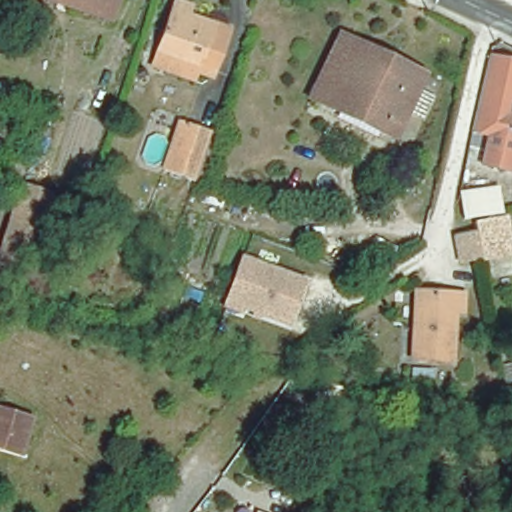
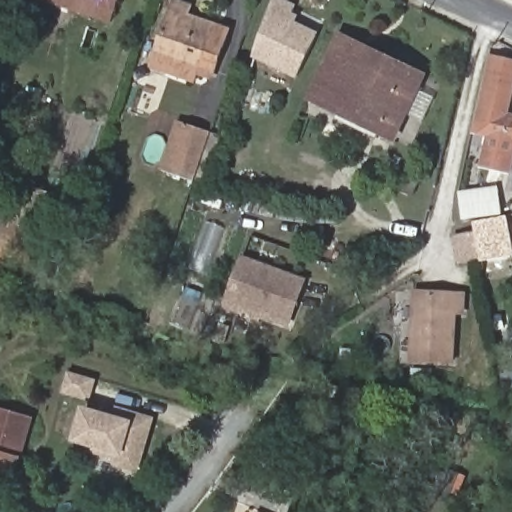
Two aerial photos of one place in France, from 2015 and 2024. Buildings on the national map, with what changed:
unchanged [(46,0),(118,0),(114,12),(110,22),(46,0)]
unchanged [(152,60),(158,44),(174,0),(192,0),(189,9),(230,25),(215,65),(200,59),(194,76),(152,60)]
new [(274,0),(287,0),(295,4),(291,12),(298,15),(295,21),(318,32),(297,78),(252,57),(274,0)]
unchanged [(340,29),(423,69),(417,81),(335,40),(340,29)]
unchanged [(309,92),(335,40),(417,81),(392,133),(375,125),(334,104),(309,92)]
unchanged [(490,52),(512,56),(512,90),(507,109),(512,109),(512,158),(510,166),(483,160),(490,130),(473,126),(490,52)]
unchanged [(190,186),(159,176),(176,126),(207,137),(190,186)]
unchanged [(417,186),(401,179),(407,165),(423,171),(417,186)]
unchanged [(0,242),(0,222),(13,185),(42,195),(22,250),(0,242)]
unchanged [(447,234),(475,229),(472,220),(461,222),(456,199),(495,189),(501,213),(510,251),(480,258),(452,263),(447,234)]
unchanged [(310,278),(292,326),(244,310),(239,316),(221,310),(242,255),(310,278)]
unchanged [(464,301),(455,301),(453,352),(413,350),(416,283),(465,285),(464,301)]
new [(70,372),(95,380),(90,399),(64,391),(70,372)]
demolished [(24,449),(0,442),(0,401),(35,411),(24,449)]
new [(83,407),(114,415),(116,406),(155,417),(139,472),(115,465),(117,460),(88,452),(90,447),(72,442),(83,407)]
new [(24,458),(16,483),(0,478),(0,407),(34,418),(24,458)]
unchanged [(450,461),(442,485),(425,479),(432,455),(450,461)]

